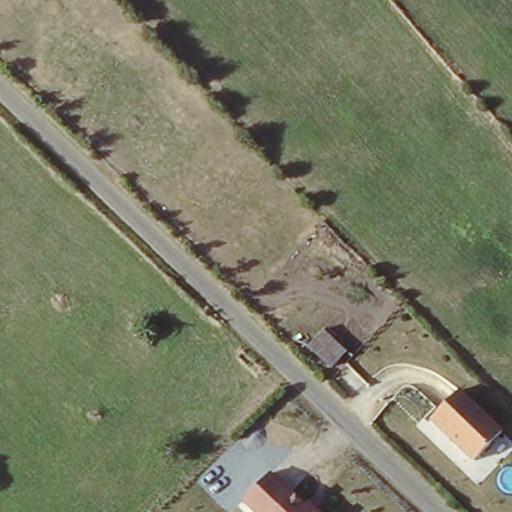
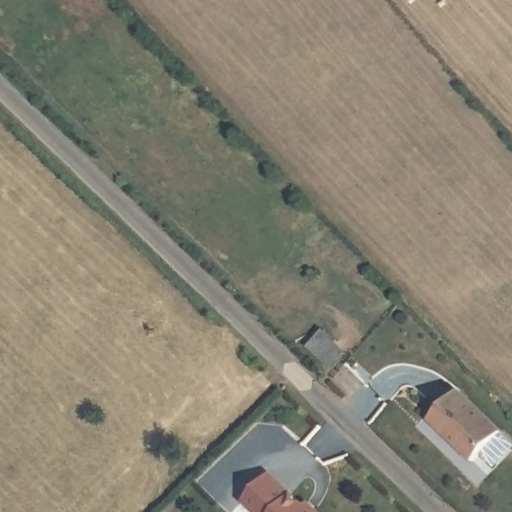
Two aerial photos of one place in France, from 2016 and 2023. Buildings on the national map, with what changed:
unchanged [(346,357),(331,373),(302,345),(316,330),(346,357)]
unchanged [(463,392),(505,431),(476,458),(436,421),(463,392)]
unchanged [(316,512),(260,512),(247,500),(275,472),(316,512)]

